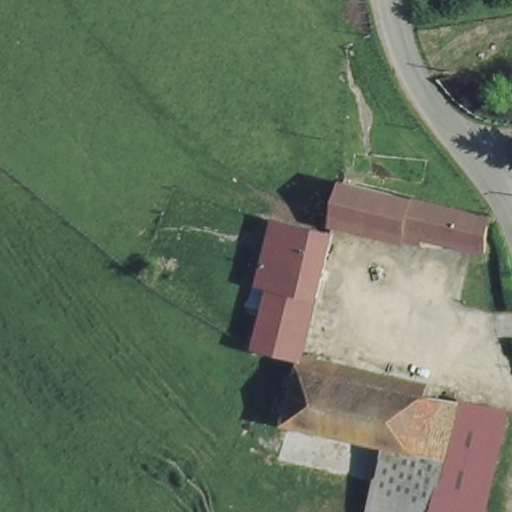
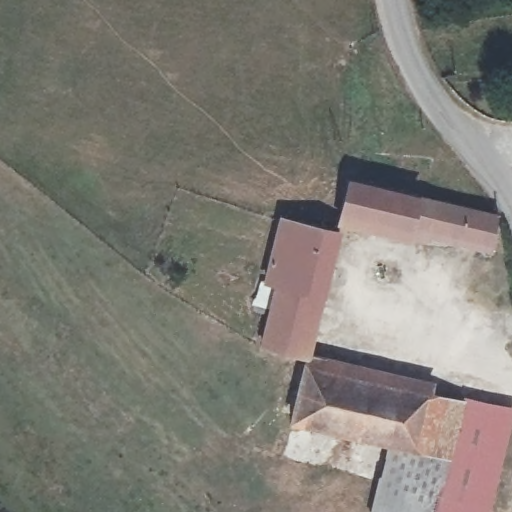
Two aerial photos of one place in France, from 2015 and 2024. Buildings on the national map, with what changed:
unchanged [(495,212),(491,237),(411,219),(407,236),(338,220),(348,176),(495,212)]
unchanged [(317,306),(273,293),(261,291),(273,236),(276,219),(336,230),(317,306)]
unchanged [(259,355),(262,342),(273,293),(317,306),(305,364),(259,355)]
unchanged [(447,462),(382,448),(290,431),(305,364),(462,400),(447,462)]
unchanged [(447,462),(462,400),(511,411),(488,512),(435,512),(447,462)]
unchanged [(435,512),(367,512),(382,448),(447,462),(435,512)]

